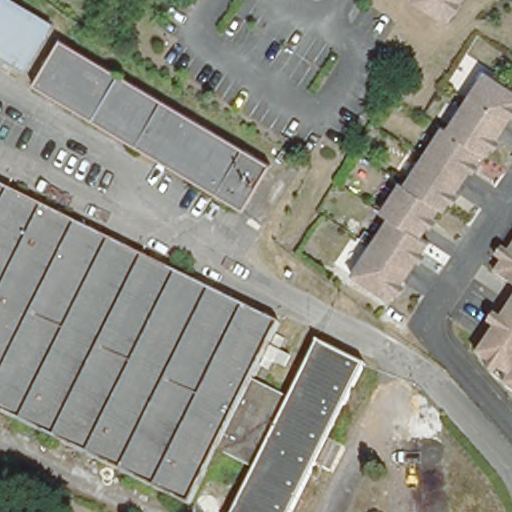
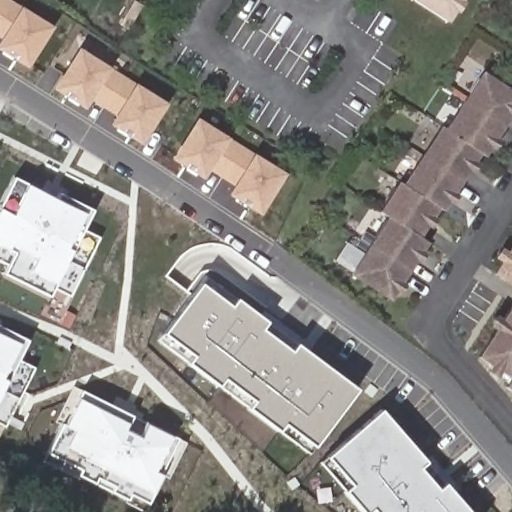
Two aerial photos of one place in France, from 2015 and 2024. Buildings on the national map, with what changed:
demolished [(0,59),(0,0),(10,0),(51,25),(22,72),(0,59)]
new [(35,72),(1,50),(6,44),(0,39),(0,0),(13,0),(60,29),(35,72)]
unchanged [(413,0),(463,0),(463,1),(458,11),(453,8),(445,20),(413,0)]
demolished [(242,210),(34,86),(60,41),(269,166),(242,210)]
new [(175,104),(151,147),(118,127),(121,119),(97,104),(93,112),(61,91),(86,51),(175,104)]
unchanged [(478,74),(512,95),(512,108),(511,109),(512,109),(512,114),(509,119),(505,117),(491,140),(494,142),(489,150),(485,148),(480,156),(475,154),(467,148),(441,131),(478,74)]
new [(293,177),(268,218),(234,196),(239,188),(217,174),(211,181),(179,159),(202,121),(293,177)]
unchanged [(467,148),(475,154),(470,163),(473,165),(469,171),(467,174),(465,170),(449,194),(452,196),(446,205),(443,203),(438,210),(435,208),(400,185),(418,157),(436,129),(441,131),(467,148)]
new [(27,185),(56,199),(60,193),(94,210),(84,230),(100,238),(71,297),(55,289),(50,296),(4,274),(9,264),(0,260),(0,206),(14,178),(27,185)]
unchanged [(435,208),(428,218),(431,220),(425,229),(422,227),(415,238),(423,244),(418,252),(421,254),(415,263),(412,261),(397,284),(401,286),(395,294),(392,292),(386,301),(346,275),(385,217),(375,212),(394,184),(398,187),(400,185),(435,208)]
demolished [(252,381),(289,400),(317,344),(364,368),(293,512),(233,512),(255,470),(217,451),(190,507),(0,412),(0,186),(279,325),(252,381)]
unchanged [(488,275),(496,264),(490,259),(495,250),(502,255),(512,240),(512,290),(488,275)]
new [(165,336),(162,334),(200,283),(206,277),(236,299),(356,389),(315,447),(310,453),(280,431),(278,432),(247,409),(248,407),(219,386),(217,387),(185,363),(186,362),(158,341),(165,336)]
unchanged [(500,387),(505,379),(495,372),(490,377),(481,371),(485,365),(472,357),(490,330),(484,327),(490,317),(496,321),(512,298),(512,395),(500,387)]
new [(19,360),(35,368),(7,427),(0,423),(0,326),(29,341),(19,360)]
new [(81,390),(146,424),(171,435),(179,438),(186,443),(170,479),(162,473),(154,493),(151,499),(157,503),(153,512),(143,512),(125,504),(127,500),(94,484),(80,477),(78,478),(45,462),(50,455),(46,453),(61,424),(55,422),(72,386),(81,390)]
new [(465,512),(374,512),(327,459),(378,413),(465,512)]

